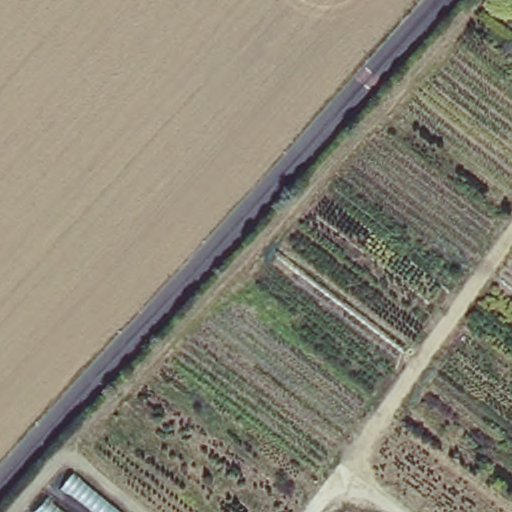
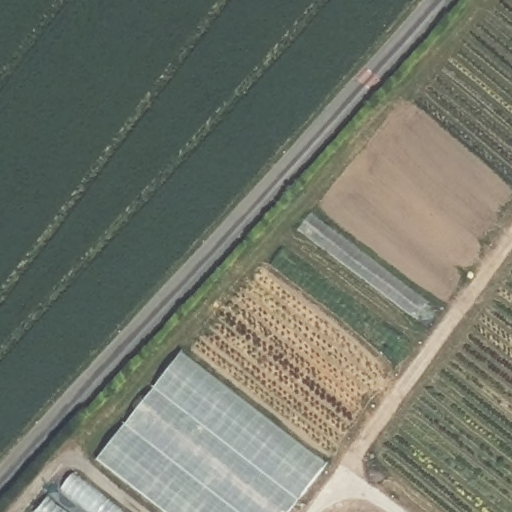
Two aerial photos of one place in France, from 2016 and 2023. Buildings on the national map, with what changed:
new [(326,468),(291,512),(161,512),(96,461),(182,350),(326,468)]
unchanged [(127,512),(34,512),(79,470),(127,512)]

